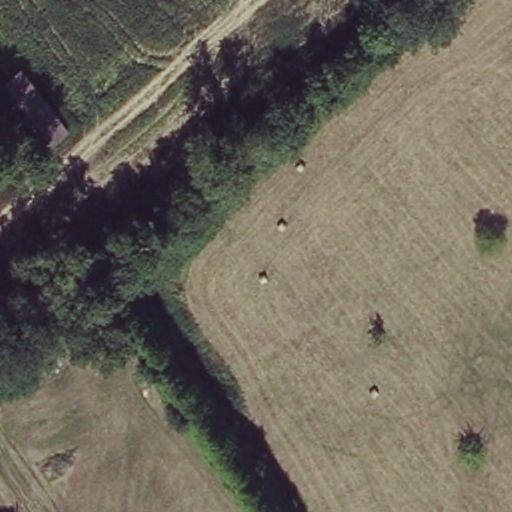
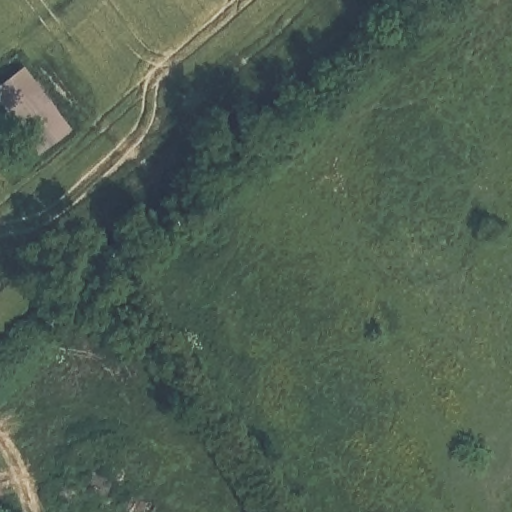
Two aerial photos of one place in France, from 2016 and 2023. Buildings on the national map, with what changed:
unchanged [(0,102),(0,89),(27,69),(51,103),(18,126),(0,102)]
unchanged [(51,103),(71,129),(38,152),(18,126),(51,103)]

